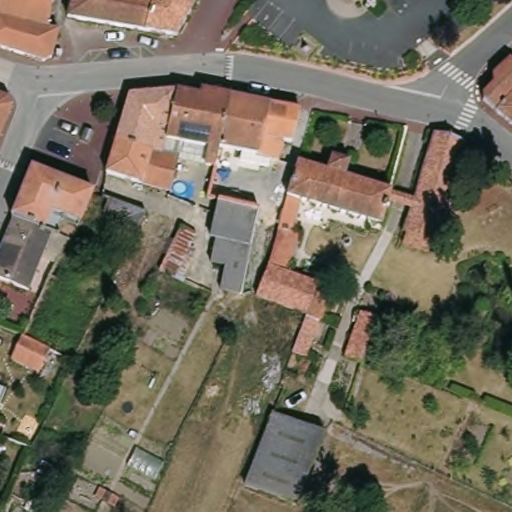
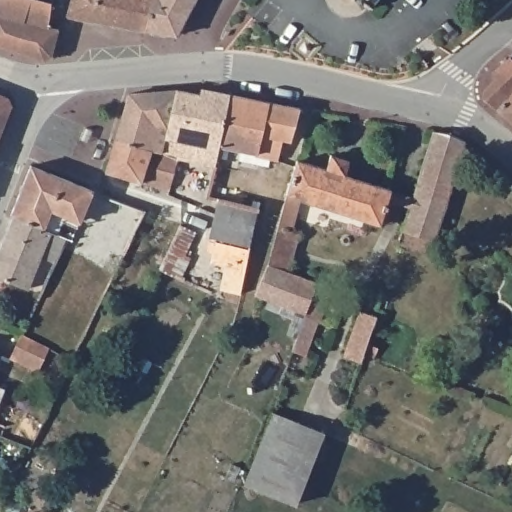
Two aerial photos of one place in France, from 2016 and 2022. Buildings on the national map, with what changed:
unchanged [(55,26),(49,53),(41,59),(0,45),(0,0),(48,0),(44,24),(55,26)]
unchanged [(143,32),(65,17),(70,0),(140,0),(150,4),(143,32)]
unchanged [(140,0),(192,0),(172,37),(143,32),(150,4),(140,0)]
unchanged [(354,0),(358,0),(356,2),(354,0)]
unchanged [(374,7),(372,9),(369,7),(366,10),(364,8),(366,4),(361,0),(374,0),(371,4),(374,7)]
unchanged [(482,100),(483,95),(492,84),(492,76),(508,60),(512,64),(512,126),(482,100)]
unchanged [(168,190),(143,184),(108,172),(118,140),(131,94),(176,91),(179,91),(200,95),(201,90),(230,95),(229,102),(224,132),(193,123),(188,154),(183,152),(179,155),(170,190),(168,190)]
unchanged [(299,110),(293,144),(284,142),(279,163),(255,159),(256,155),(221,146),(222,139),(224,132),(229,102),(230,95),(299,110)]
unchanged [(9,107),(0,128),(0,97),(5,100),(9,107)]
unchanged [(211,265),(215,241),(209,240),(220,203),(207,200),(215,167),(212,167),(208,165),(209,162),(188,154),(193,123),(224,132),(222,139),(221,146),(218,164),(217,167),(267,181),(259,210),(273,214),(269,227),(255,223),(253,237),(250,253),(248,253),(247,258),(249,259),(243,293),(242,293),(223,290),(225,268),(211,265)]
unchanged [(448,136),(466,144),(434,243),(401,232),(432,134),(448,136)]
unchanged [(293,353),(295,346),(305,316),(284,307),(267,301),(264,300),(257,297),(264,277),(269,266),(275,241),(278,230),(279,222),(284,204),(287,197),(298,162),(325,171),(329,157),(348,164),(344,177),(391,192),(381,227),(300,202),(292,232),(299,235),(289,274),(330,290),(306,358),(294,355),(293,353)]
unchanged [(23,177),(29,162),(89,187),(69,236),(65,235),(50,228),(14,214),(9,211),(23,177)]
unchanged [(0,250),(14,214),(50,228),(33,273),(28,286),(0,274),(0,250)]
unchanged [(166,271),(163,268),(161,268),(181,222),(198,229),(177,275),(166,271)]
unchanged [(367,320),(359,347),(369,351),(364,363),(354,359),(352,365),(335,359),(350,314),(364,318),(367,320)]
unchanged [(47,353),(56,357),(48,381),(18,367),(29,343),(47,353)]
unchanged [(0,395),(0,379),(5,382),(0,395)]
unchanged [(267,410),(322,431),(295,507),(239,485),(267,410)]

